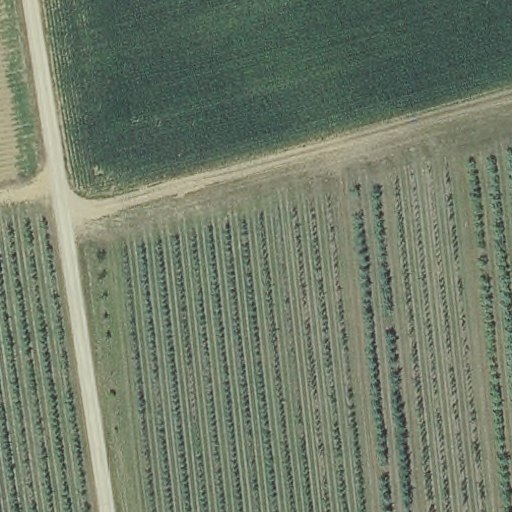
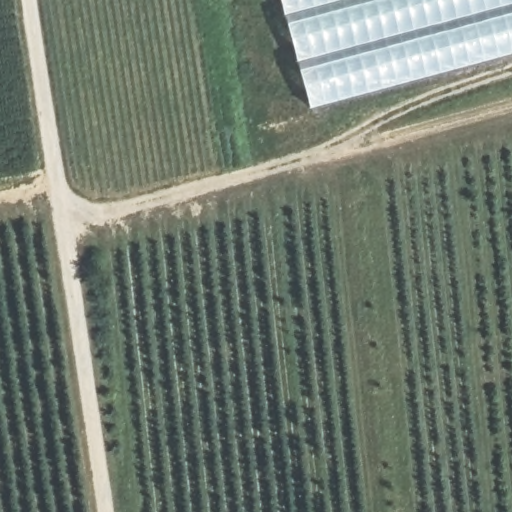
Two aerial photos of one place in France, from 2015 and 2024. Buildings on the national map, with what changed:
new [(392,35),(330,54),(296,61),(279,0),(512,0),(512,2),(392,35)]
new [(331,57),(384,44),(512,10),(512,54),(309,109),(296,61),(330,54),(331,57)]

